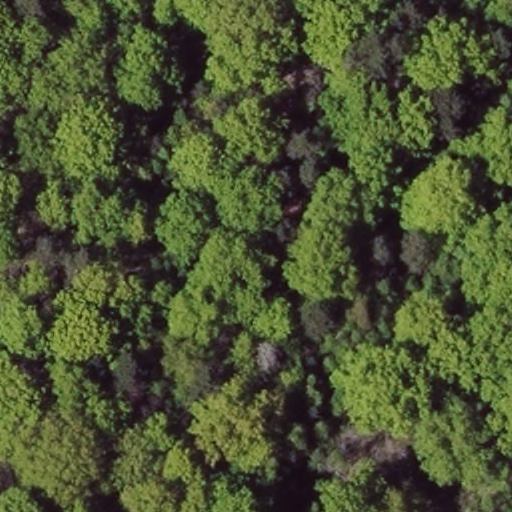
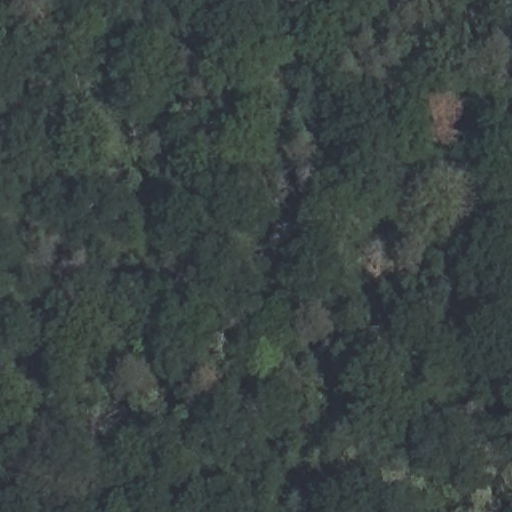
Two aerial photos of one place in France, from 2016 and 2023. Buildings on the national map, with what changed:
[]

